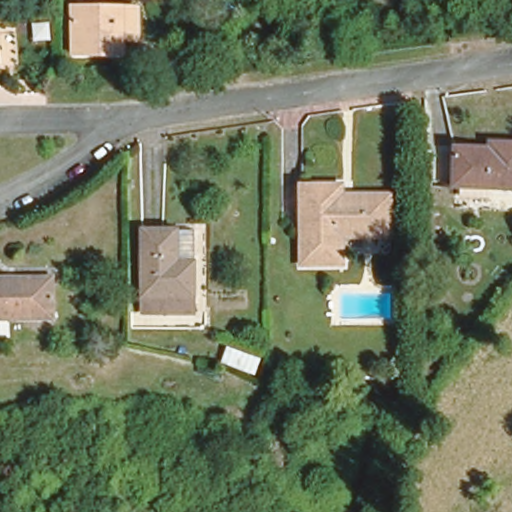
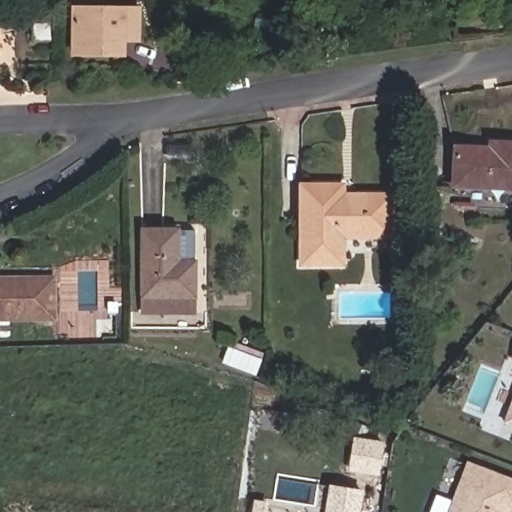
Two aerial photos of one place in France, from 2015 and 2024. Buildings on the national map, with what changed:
unchanged [(121,33),(120,50),(71,44),(76,6),(77,0),(106,0),(140,3),(135,34),(121,33)]
unchanged [(451,184),(454,146),(493,149),(493,139),(512,141),(512,187),(451,184)]
unchanged [(341,178),(340,189),(387,192),(384,233),(338,230),(336,262),(295,260),(299,176),(341,178)]
unchanged [(144,219),(198,219),(198,310),(142,311),(144,219)]
unchanged [(0,277),(49,279),(48,320),(0,319),(0,277)]
new [(503,423),(512,398),(512,427),(503,423)]
new [(385,443),(379,477),(349,472),(353,437),(385,443)]
new [(512,478),(512,507),(510,512),(447,512),(467,461),(512,478)]
new [(329,486),(364,492),(360,512),(324,512),(329,486)]

